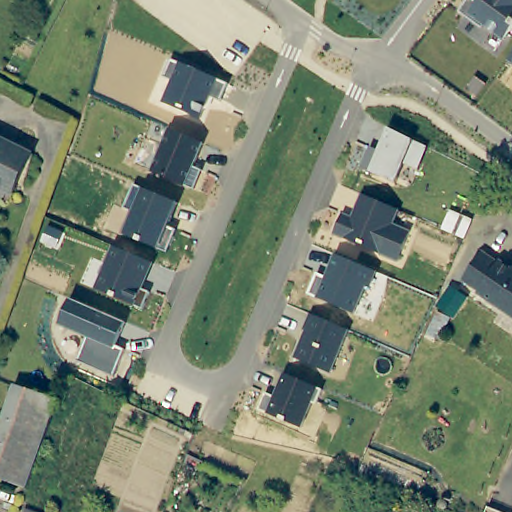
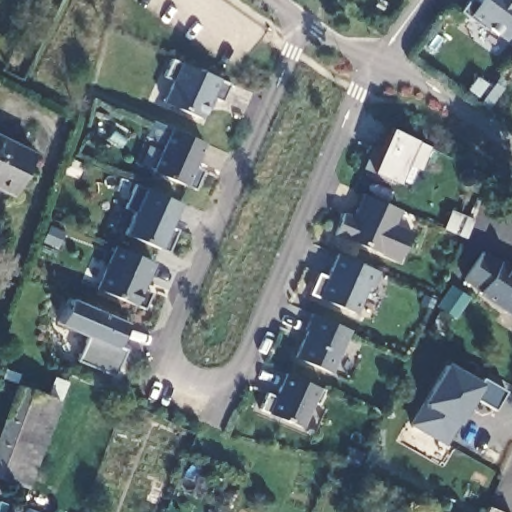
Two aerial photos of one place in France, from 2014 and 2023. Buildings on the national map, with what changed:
unchanged [(469,0),(474,0),(476,2),(478,0),(512,0),(512,31),(504,42),(461,12),(469,0)]
unchanged [(512,57),(512,64),(509,62),(512,57)]
unchanged [(163,104),(173,81),(163,76),(171,59),(229,85),(221,102),(210,97),(201,121),(163,104)]
unchanged [(153,173),(170,129),(204,145),(194,167),(203,172),(194,191),(153,173)]
unchanged [(371,174),(362,170),(371,148),(380,152),(390,130),(415,142),(430,149),(420,171),(404,164),(396,183),(371,174)]
unchanged [(32,155),(11,197),(0,191),(0,139),(32,155)]
unchanged [(124,236),(134,211),(126,207),(135,187),(145,190),(176,203),(167,226),(176,231),(167,253),(124,236)]
unchanged [(334,237),(343,214),(352,218),(363,195),(401,212),(395,226),(412,233),(399,263),(334,237)]
unchanged [(96,291),(115,246),(154,265),(144,290),(151,293),(144,310),(96,291)]
unchanged [(510,268),(512,267),(512,314),(471,288),(473,286),(456,275),(474,247),(491,258),(492,256),(510,268)]
unchanged [(309,295),(319,273),(326,277),(336,255),(373,271),(353,314),(309,295)]
unchanged [(430,303),(441,287),(444,282),(461,293),(458,298),(447,314),(430,303)]
unchanged [(78,361),(88,338),(60,325),(71,299),(127,325),(116,349),(124,353),(116,376),(78,361)]
unchanged [(344,326),(324,369),(289,353),(301,326),(299,325),(306,309),(344,326)]
new [(481,384),(483,379),(505,392),(494,409),(475,396),(462,419),(458,425),(457,427),(446,446),(410,424),(422,403),(445,362),(481,384)]
unchanged [(262,409),(267,394),(276,398),(285,376),(318,389),(301,430),(262,409)]
unchanged [(13,385),(24,389),(0,458),(0,422),(13,385)]
unchanged [(25,488),(0,478),(0,458),(24,389),(56,402),(25,488)]

